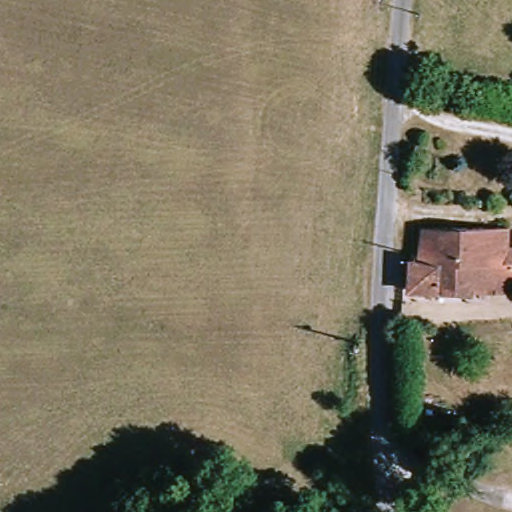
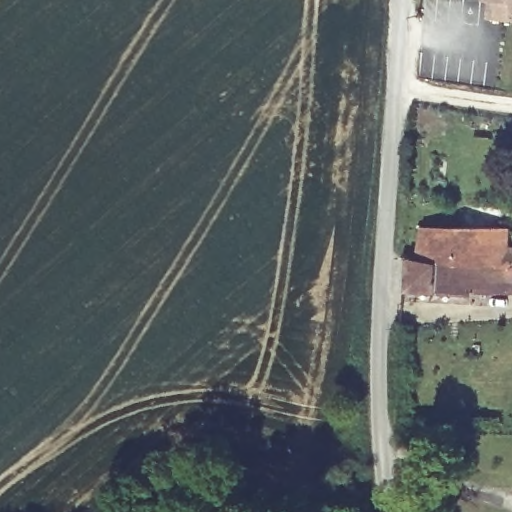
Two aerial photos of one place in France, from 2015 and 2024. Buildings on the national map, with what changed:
new [(490,21),(491,3),(485,3),(485,0),(512,0),(512,22),(499,21),(490,21)]
unchanged [(512,227),(512,260),(506,259),(426,258),(428,226),(512,227)]
unchanged [(410,289),(410,257),(426,258),(512,260),(512,292),(476,293),(410,289)]

